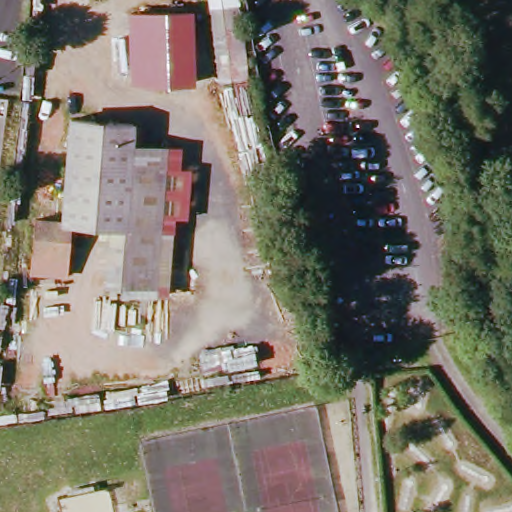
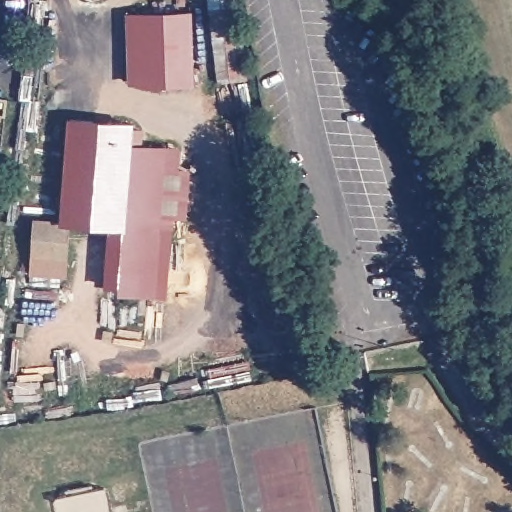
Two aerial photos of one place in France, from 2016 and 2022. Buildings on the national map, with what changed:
unchanged [(242,0),(251,60),(218,64),(210,11),(208,0),(242,0)]
unchanged [(125,223),(70,220),(67,258),(32,255),(35,219),(63,221),(71,120),(132,124),(130,149),(125,223)]
unchanged [(167,152),(156,293),(120,289),(125,223),(130,149),(167,152)]

